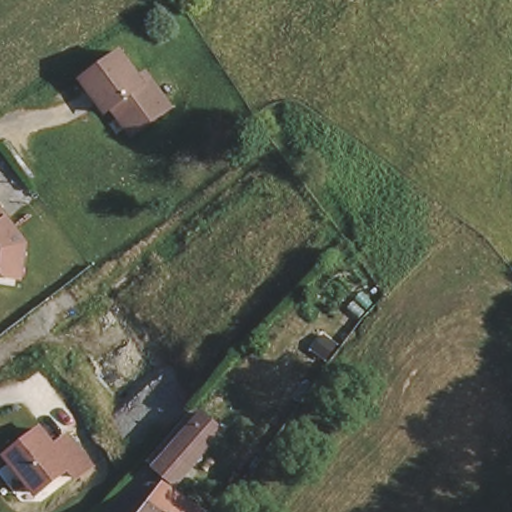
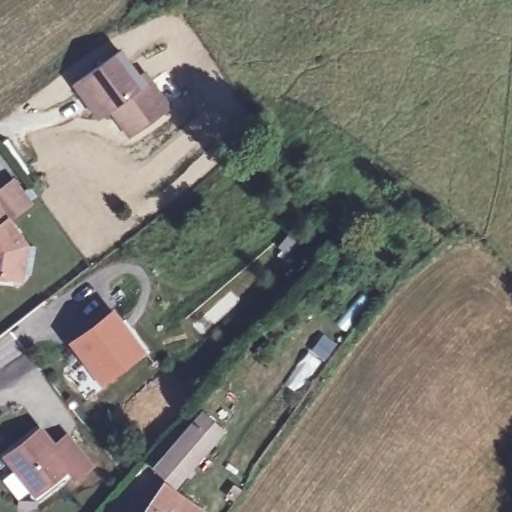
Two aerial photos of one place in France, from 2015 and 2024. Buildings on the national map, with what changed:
unchanged [(132,133),(112,105),(106,109),(82,76),(121,49),(140,75),(146,71),(150,76),(170,104),(132,133)]
new [(34,204),(12,221),(0,206),(0,189),(15,179),(34,204)]
unchanged [(24,277),(0,273),(0,206),(29,244),(24,277)]
new [(114,308),(147,352),(101,388),(67,342),(114,308)]
unchanged [(235,434),(187,486),(167,468),(216,416),(235,434)]
unchanged [(67,437),(90,467),(76,478),(69,468),(35,493),(10,459),(6,454),(22,442),(41,429),(54,447),(67,437)]
unchanged [(180,487),(212,512),(161,512),(180,487)]

